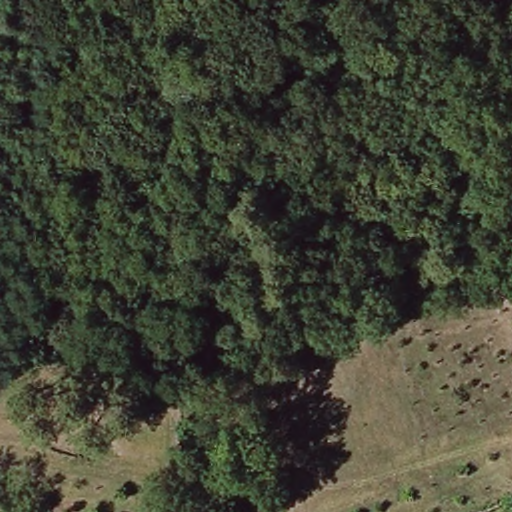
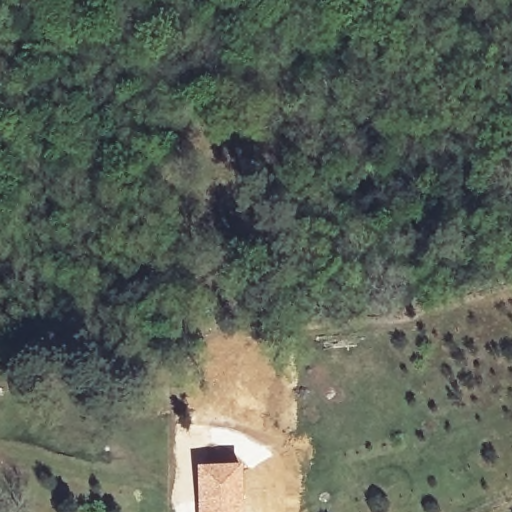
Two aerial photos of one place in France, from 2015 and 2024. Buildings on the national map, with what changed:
new [(243,466),(244,512),(198,512),(196,467),(243,466)]

